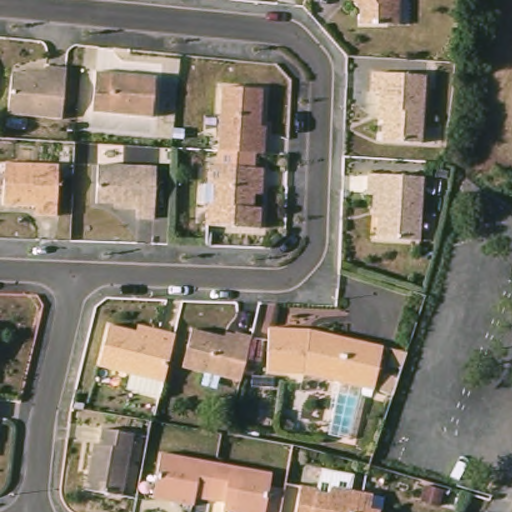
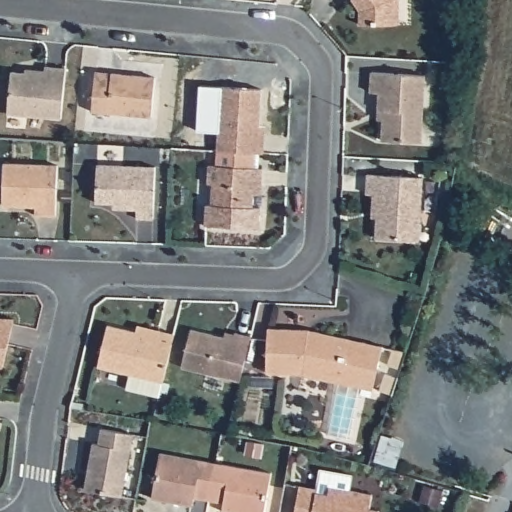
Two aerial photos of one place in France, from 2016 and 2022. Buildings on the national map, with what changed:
unchanged [(411,31),(400,31),(373,31),(373,16),(365,6),(370,1),(369,0),(407,0),(411,7),(411,31)]
unchanged [(39,79),(39,71),(61,74),(57,124),(4,120),(7,77),(39,79)]
unchanged [(147,117),(88,113),(90,80),(92,71),(108,72),(151,77),(147,117)]
unchanged [(375,118),(376,100),(368,99),(369,79),(421,82),(416,149),(379,146),(380,129),(375,128),(375,118)]
unchanged [(266,143),(265,160),(255,159),(217,156),(222,91),(264,94),(261,131),(267,132),(266,143)]
unchanged [(262,215),(261,234),(206,230),(207,210),(211,210),(212,187),(208,187),(210,170),(216,171),(217,156),(255,159),(255,174),(264,174),(263,190),(263,200),(255,198),(254,214),(262,215)]
unchanged [(58,166),(55,215),(36,215),(35,209),(2,207),(5,164),(58,166)]
unchanged [(151,169),(147,221),(132,221),(132,213),(117,212),(116,205),(92,203),(94,166),(151,169)]
unchanged [(370,202),(364,201),(365,181),(420,185),(416,245),(375,243),(375,225),(370,225),(370,202)]
unchanged [(109,323),(138,329),(140,322),(160,327),(175,331),(164,380),(99,363),(109,323)]
unchanged [(318,329),(384,345),(374,388),(365,387),(337,380),(310,374),(267,369),(271,324),(318,329)]
new [(0,370),(0,349),(0,325),(16,325),(10,350),(4,370),(0,370)]
unchanged [(184,365),(193,329),(235,339),(237,331),(252,335),(240,380),(184,365)]
unchanged [(391,367),(395,351),(409,354),(403,370),(391,367)]
unchanged [(382,388),(387,373),(400,376),(395,393),(382,388)]
unchanged [(131,435),(121,496),(84,490),(92,444),(97,445),(100,430),(131,435)]
unchanged [(215,464),(212,475),(208,500),(193,498),(191,506),(151,499),(159,454),(215,464)]
unchanged [(263,512),(224,512),(221,511),(222,503),(208,500),(212,475),(215,464),(270,474),(263,512)]
unchanged [(321,486),(320,490),(331,492),(333,485),(375,495),(371,510),(381,512),(296,512),(303,481),(321,486)]

